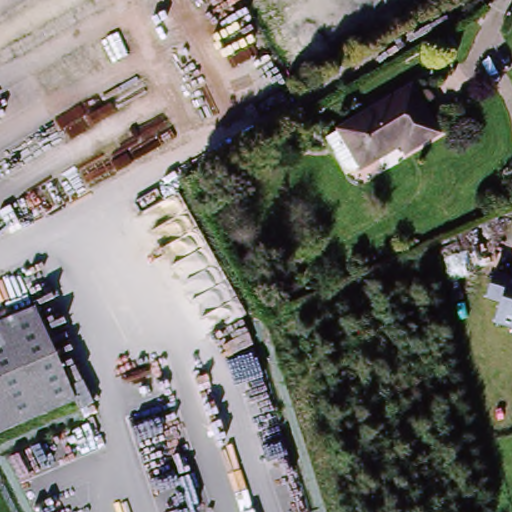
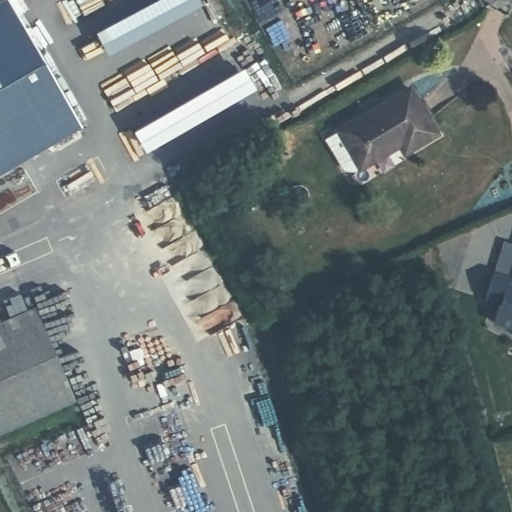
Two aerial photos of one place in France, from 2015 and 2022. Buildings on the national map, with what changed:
new [(7,0),(79,125),(0,170),(0,0),(7,0)]
unchanged [(401,150),(397,141),(357,164),(337,129),(375,106),(375,104),(406,86),(433,131),(401,150)]
unchanged [(511,328),(491,322),(497,303),(483,298),(493,269),(509,274),(512,264),(512,335),(510,335),(511,328)]
unchanged [(31,311),(70,402),(0,433),(0,324),(31,311)]

